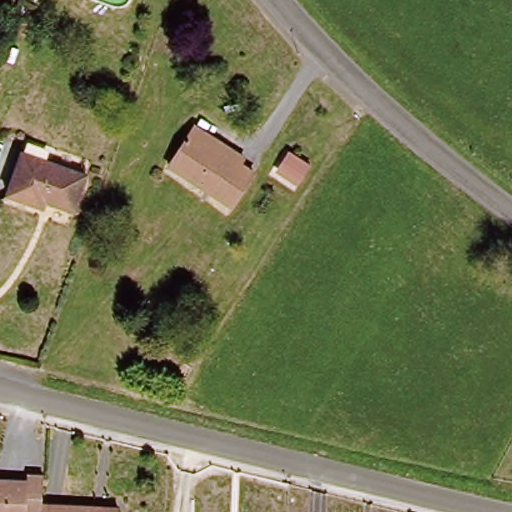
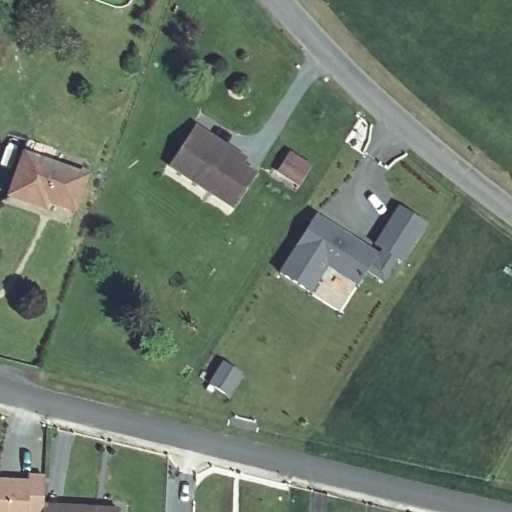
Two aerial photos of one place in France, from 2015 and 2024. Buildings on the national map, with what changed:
unchanged [(239,209),(176,168),(197,135),(203,127),(253,158),(247,167),(260,175),(239,209)]
unchanged [(52,204),(50,210),(15,199),(30,156),(91,176),(80,212),(52,204)]
new [(401,266),(395,263),(382,283),(365,275),(358,287),(327,267),(310,295),(277,275),(312,215),(370,251),(399,205),(428,225),(401,266)]
unchanged [(28,478),(28,471),(47,470),(47,503),(48,512),(0,512),(0,478),(28,478)]
unchanged [(126,512),(48,512),(47,503),(126,504),(126,512)]

